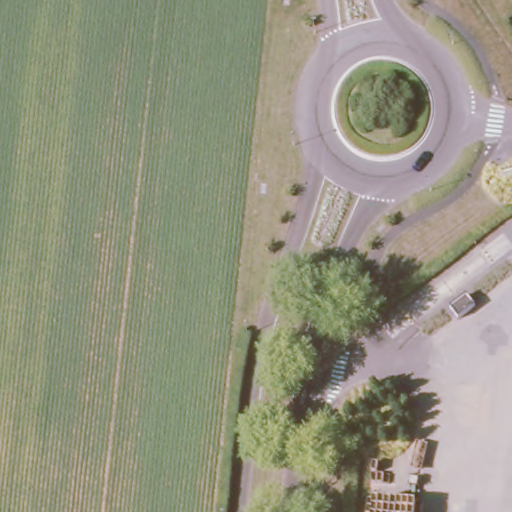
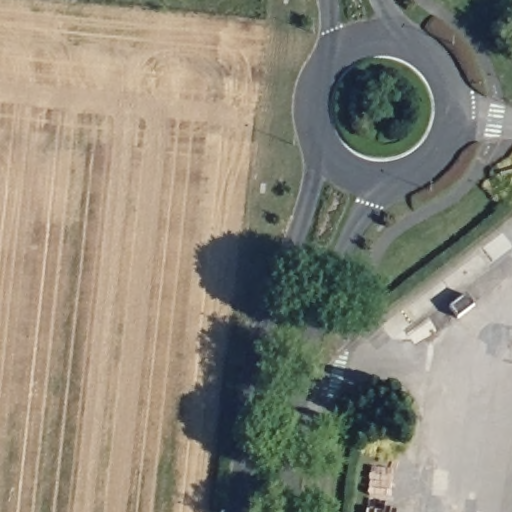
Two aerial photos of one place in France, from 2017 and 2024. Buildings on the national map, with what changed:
unchanged [(464,296),(473,307),(458,319),(449,308),(464,296)]

